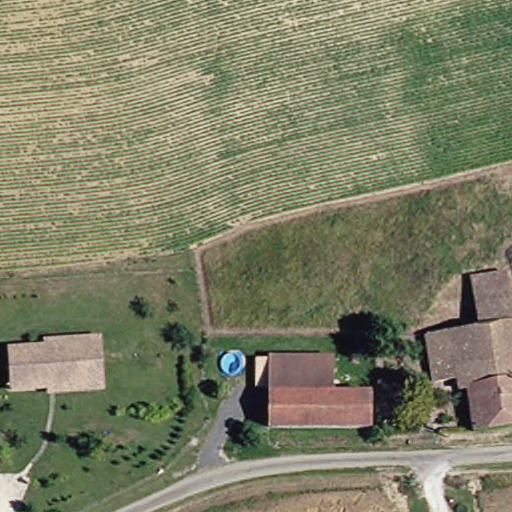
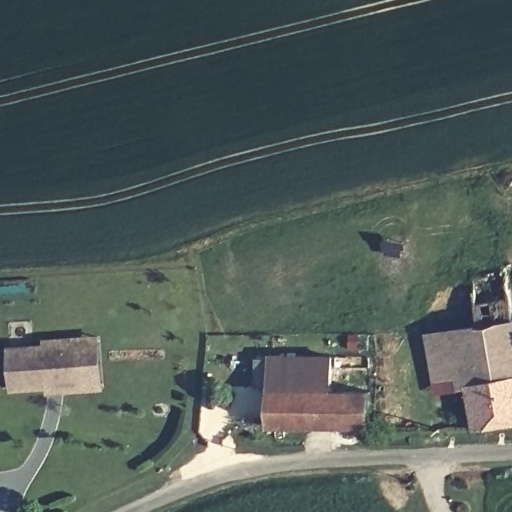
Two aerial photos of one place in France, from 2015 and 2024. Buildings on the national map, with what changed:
unchanged [(475,432),(468,391),(439,392),(430,328),(480,322),(471,275),(509,270),(512,287),(512,425),(475,432)]
unchanged [(2,348),(83,345),(99,343),(101,385),(84,385),(5,388),(2,348)]
unchanged [(272,357),(334,357),(334,377),(272,378),(272,357)]
unchanged [(334,377),(334,392),(374,392),(373,428),(273,429),(272,378),(334,377)]

